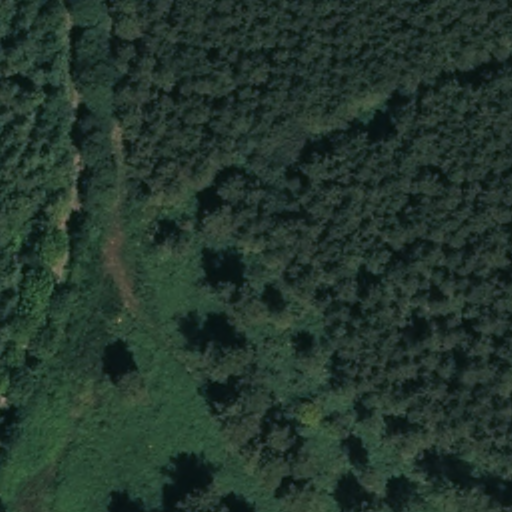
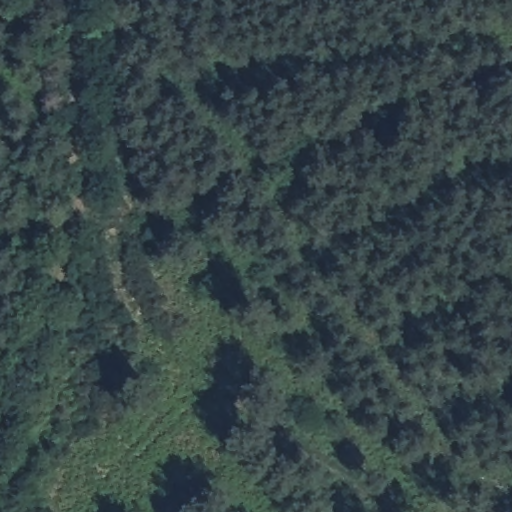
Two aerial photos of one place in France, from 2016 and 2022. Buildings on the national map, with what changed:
[]

